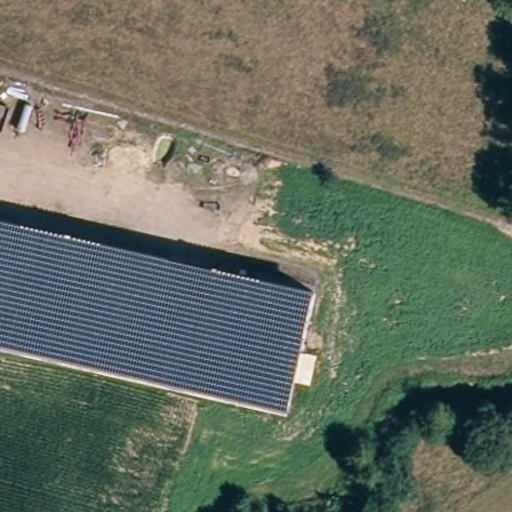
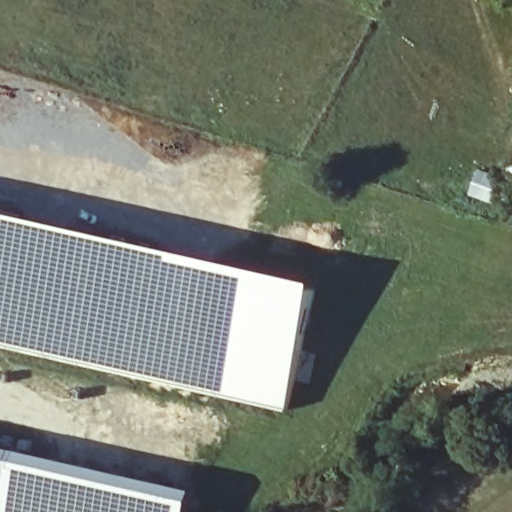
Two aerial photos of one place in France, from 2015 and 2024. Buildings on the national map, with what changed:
unchanged [(0,211),(317,285),(290,410),(0,344),(0,211)]
new [(191,512),(0,512),(0,445),(196,490),(191,512)]

